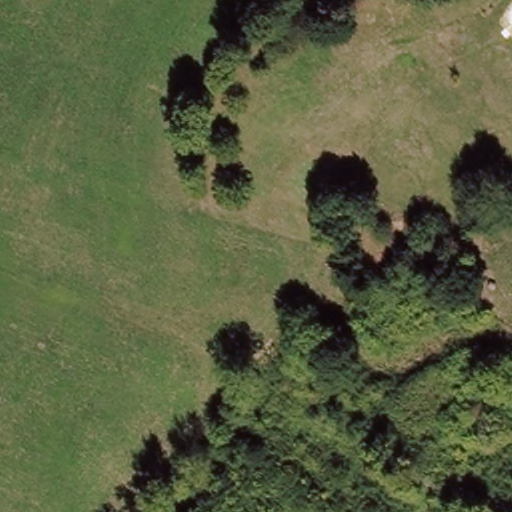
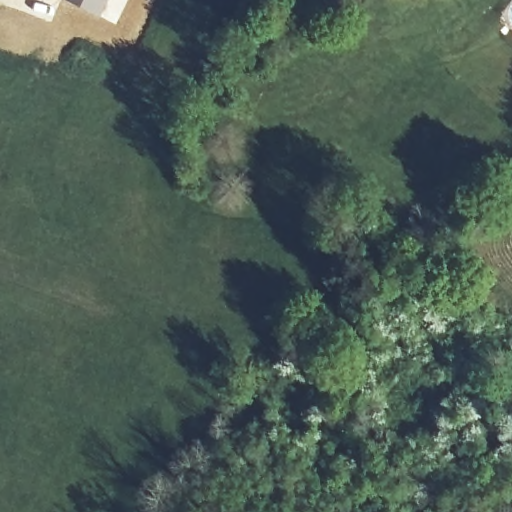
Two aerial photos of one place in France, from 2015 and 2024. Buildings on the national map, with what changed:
new [(115,24),(66,0),(128,0),(115,24)]

